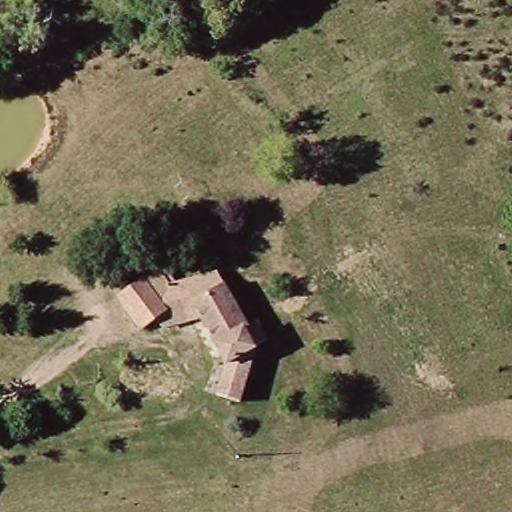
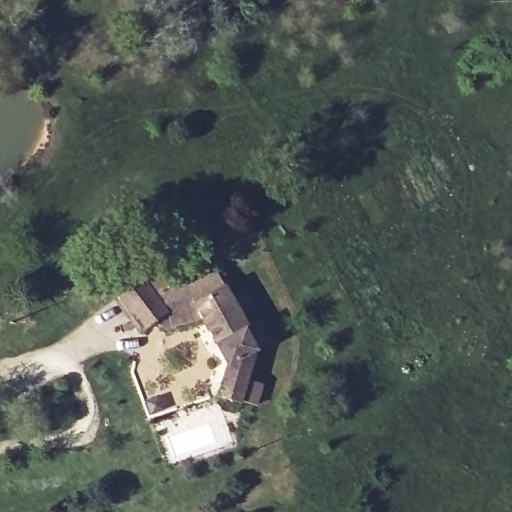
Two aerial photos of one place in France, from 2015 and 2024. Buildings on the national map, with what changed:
unchanged [(170,325),(164,316),(148,326),(126,293),(149,277),(164,268),(174,267),(177,272),(183,281),(226,273),(256,328),(264,324),(274,343),(262,349),(257,367),(244,404),(222,397),(232,365),(209,321),(170,325)]

